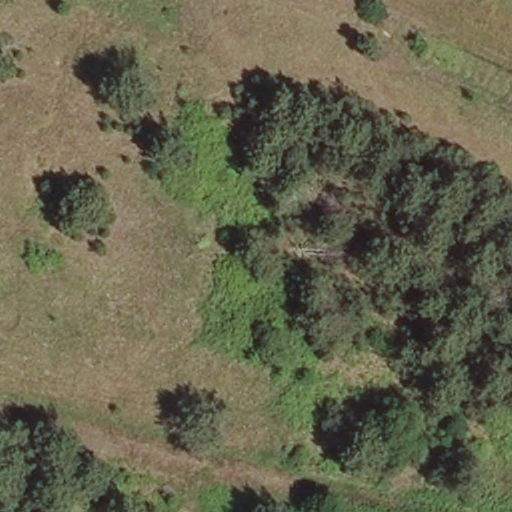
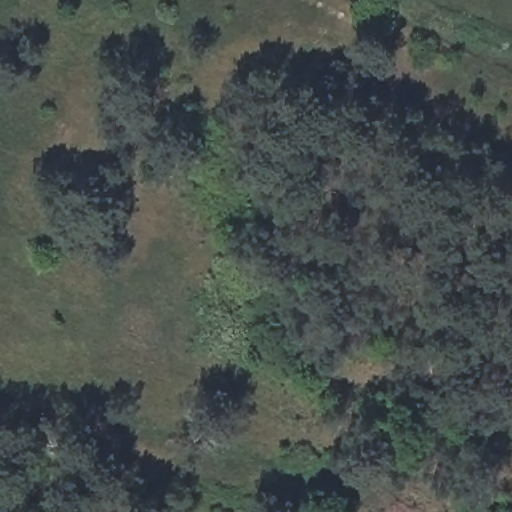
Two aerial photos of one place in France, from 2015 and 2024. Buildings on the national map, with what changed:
unchanged [(47,251),(43,265),(31,262),(34,247),(47,251)]

